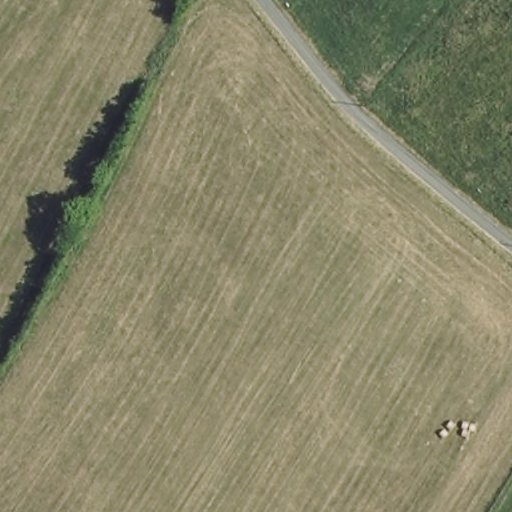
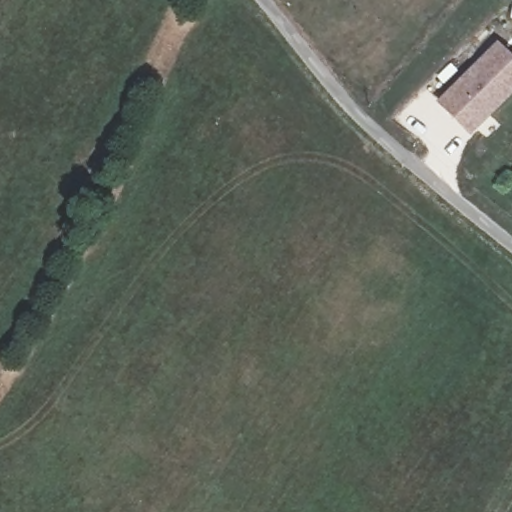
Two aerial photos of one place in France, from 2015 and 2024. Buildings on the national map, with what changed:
new [(497,39),(512,55),(512,92),(468,136),(436,101),(497,39)]

